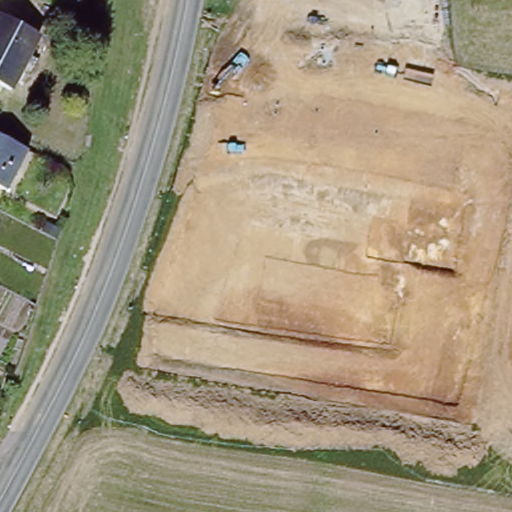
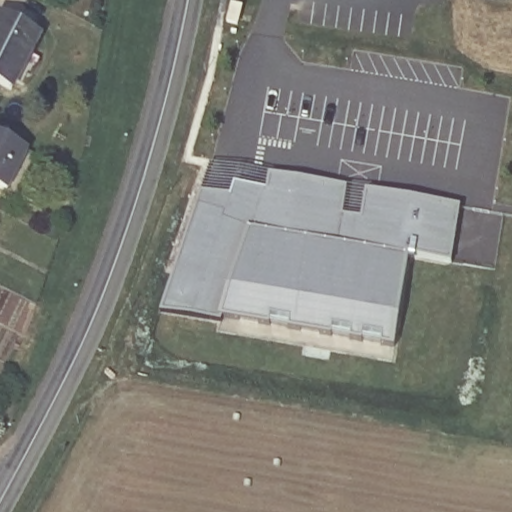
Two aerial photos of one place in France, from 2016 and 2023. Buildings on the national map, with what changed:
new [(231,4),(242,6),(237,24),(227,22),(231,4)]
unchanged [(0,13),(40,32),(24,62),(0,49),(0,13)]
unchanged [(10,89),(0,84),(0,49),(24,62),(10,89)]
unchanged [(14,192),(0,184),(0,134),(35,154),(14,192)]
new [(452,261),(410,257),(395,343),(222,315),(222,318),(162,307),(215,164),(270,174),(346,186),(461,205),(452,261)]

